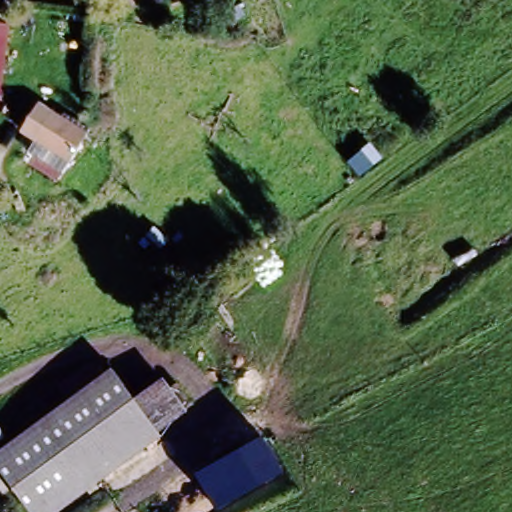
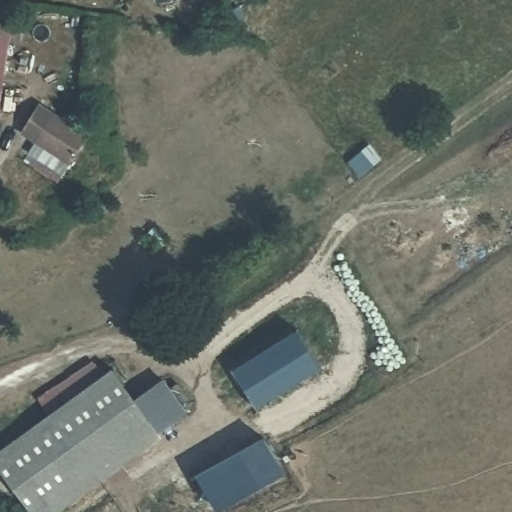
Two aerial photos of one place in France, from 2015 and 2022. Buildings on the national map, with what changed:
unchanged [(160,7),(156,0),(174,0),(160,7)]
unchanged [(0,64),(0,22),(7,23),(0,64)]
unchanged [(22,156),(30,142),(29,141),(12,133),(26,100),(45,109),(87,128),(70,162),(63,176),(22,156)]
new [(297,333),(320,371),(257,406),(234,372),(297,333)]
unchanged [(115,371),(158,432),(76,491),(32,431),(115,371)]
unchanged [(188,410),(158,432),(134,398),(163,377),(188,410)]
unchanged [(76,491),(46,512),(28,512),(0,472),(0,453),(32,431),(76,491)]
unchanged [(264,435),(286,472),(217,507),(197,472),(264,435)]

